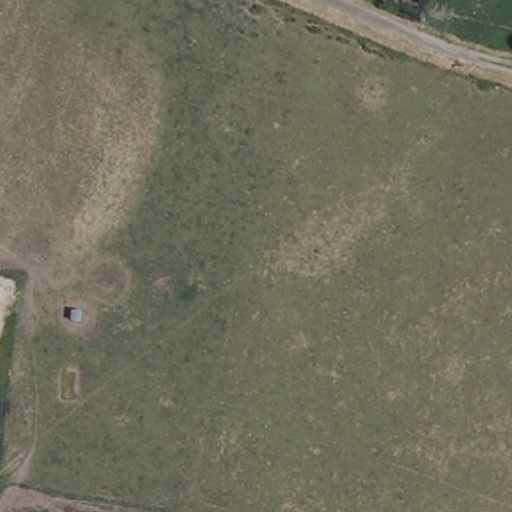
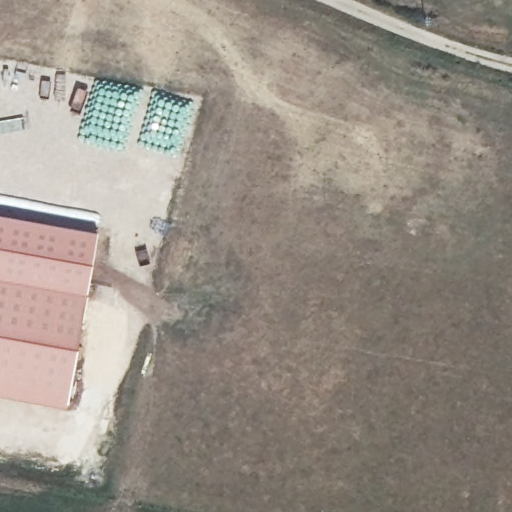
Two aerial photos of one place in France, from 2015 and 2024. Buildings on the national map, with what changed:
new [(65,407),(0,395),(0,216),(97,233),(65,407)]

